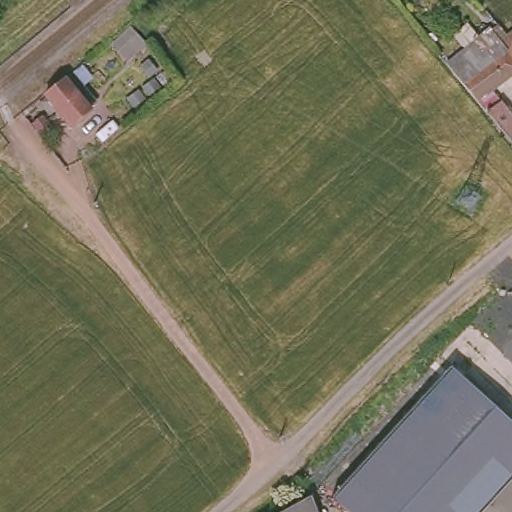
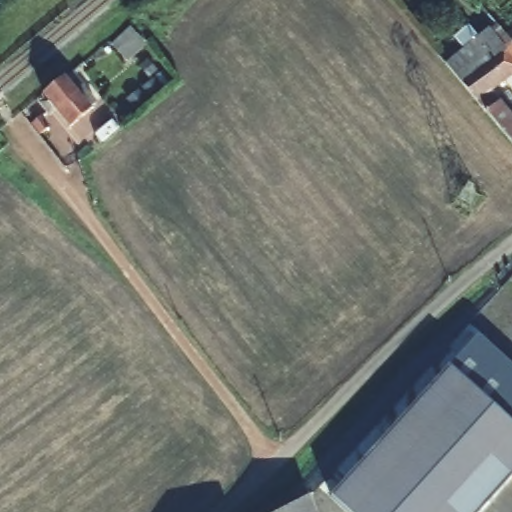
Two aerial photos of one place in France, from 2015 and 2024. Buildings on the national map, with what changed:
unchanged [(512,29),(512,54),(499,39),(512,29)]
unchanged [(480,116),(443,74),(477,47),(484,56),(492,50),(510,72),(482,95),(492,106),(512,129),(512,155),(502,143),(480,116)]
unchanged [(92,107),(72,123),(46,93),(47,92),(67,77),(92,107)]
unchanged [(93,152),(87,142),(119,116),(127,125),(93,152)]
unchanged [(52,125),(45,130),(39,122),(45,117),(52,125)]
new [(512,367),(512,420),(457,362),(480,338),(512,367)]
unchanged [(356,512),(329,481),(457,362),(512,420),(512,476),(475,512),(356,512)]
unchanged [(264,512),(301,485),(312,512),(264,512)]

